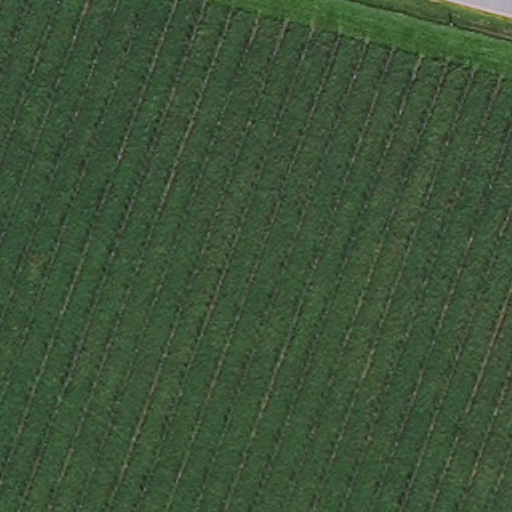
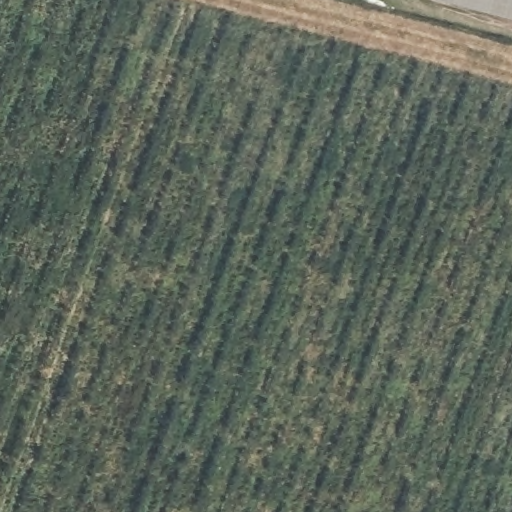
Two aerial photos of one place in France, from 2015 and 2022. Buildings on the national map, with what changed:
unchanged [(512,17),(452,0),(512,0),(512,17)]

